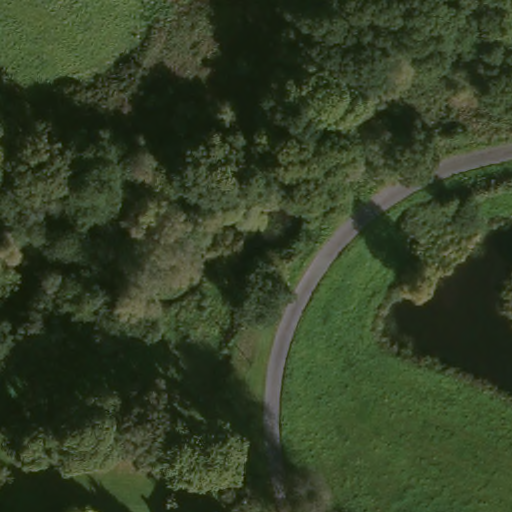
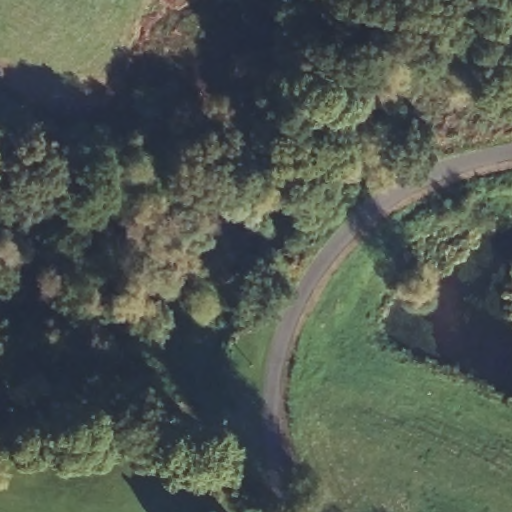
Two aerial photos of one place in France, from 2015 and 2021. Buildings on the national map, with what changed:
unchanged [(220,512),(217,512),(218,510),(220,512)]

